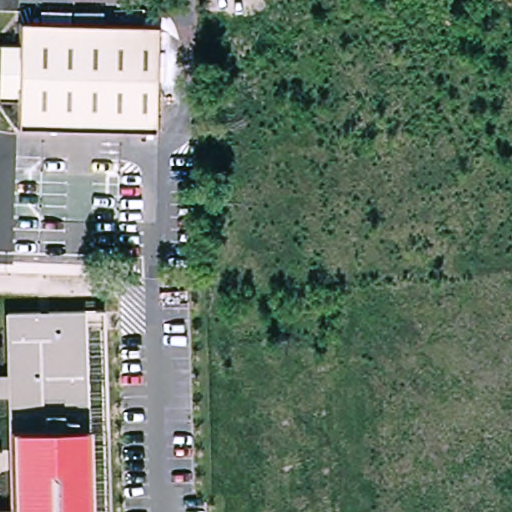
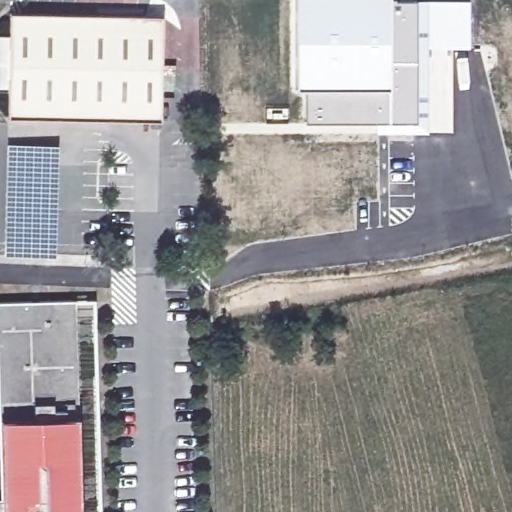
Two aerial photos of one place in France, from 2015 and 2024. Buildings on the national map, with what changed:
new [(389,0),(417,0),(469,0),(469,48),(429,49),(428,132),(376,131),(376,123),(306,124),(306,89),(296,88),(296,0),(390,0),(389,0)]
unchanged [(166,123),(11,119),(12,93),(0,93),(0,37),(13,37),(13,14),(169,16),(166,123)]
new [(59,145),(55,256),(5,255),(8,144),(59,145)]
unchanged [(4,352),(3,314),(75,312),(76,355),(80,512),(0,512),(0,511),(8,510),(5,392),(0,392),(0,377),(4,377),(4,352)]

